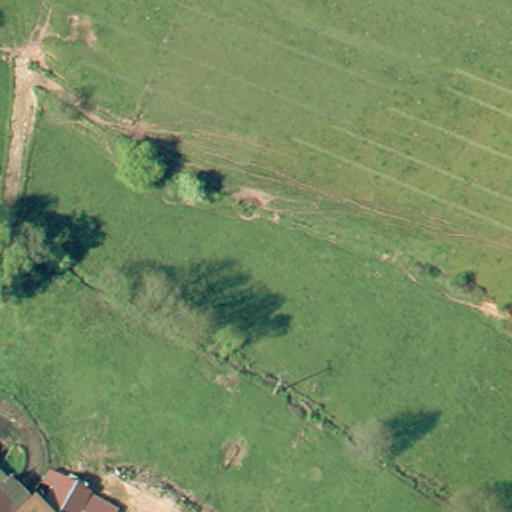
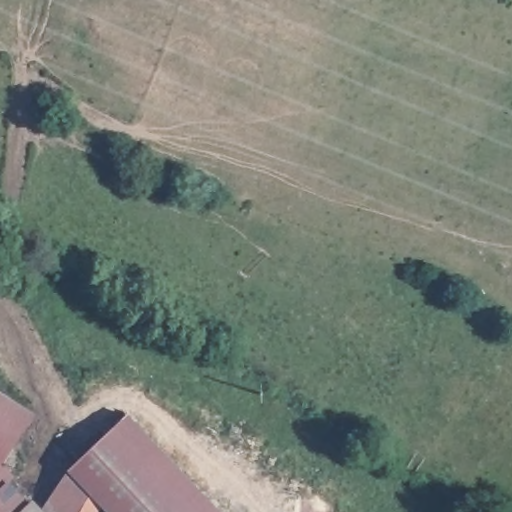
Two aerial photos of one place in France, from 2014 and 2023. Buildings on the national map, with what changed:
new [(35,412),(5,463),(13,472),(7,478),(0,485),(0,390),(35,412)]
new [(106,512),(88,493),(78,512),(41,512),(68,469),(126,412),(222,512),(106,512)]
new [(0,512),(0,485),(7,478),(31,502),(22,512),(0,512)]
demolished [(111,512),(50,512),(60,490),(111,512)]
new [(41,512),(22,512),(31,502),(41,512)]
demolished [(40,512),(33,512),(36,508),(40,512)]

